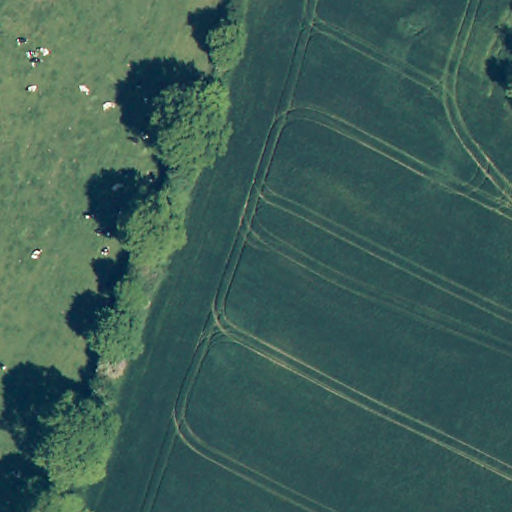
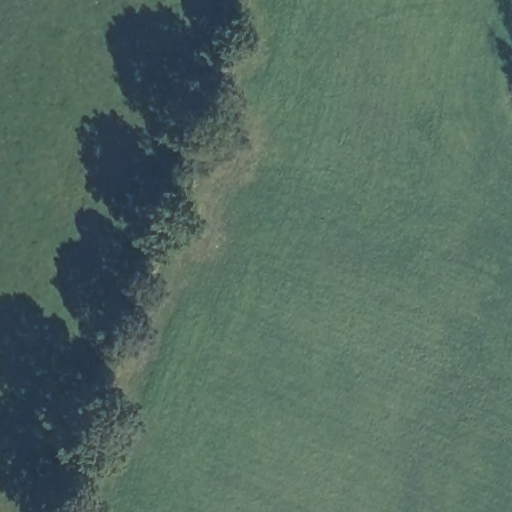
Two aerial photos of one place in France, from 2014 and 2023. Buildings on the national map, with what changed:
[]

